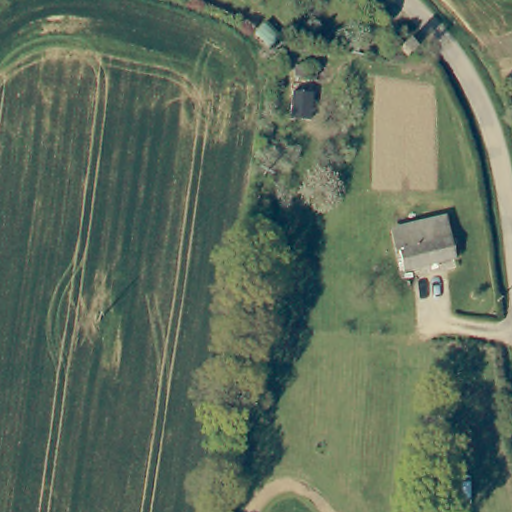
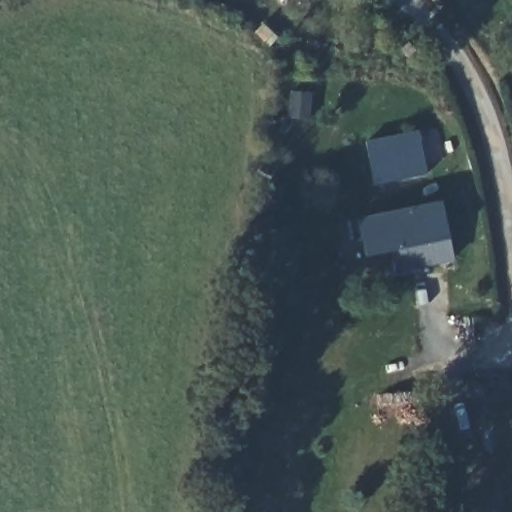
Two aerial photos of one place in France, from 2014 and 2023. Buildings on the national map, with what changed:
new [(427,174),(376,184),(366,142),(418,130),(427,174)]
new [(404,272),(398,250),(367,257),(359,219),(442,202),(452,239),(456,262),(404,272)]
demolished [(453,265),(402,274),(394,231),(445,222),(453,265)]

